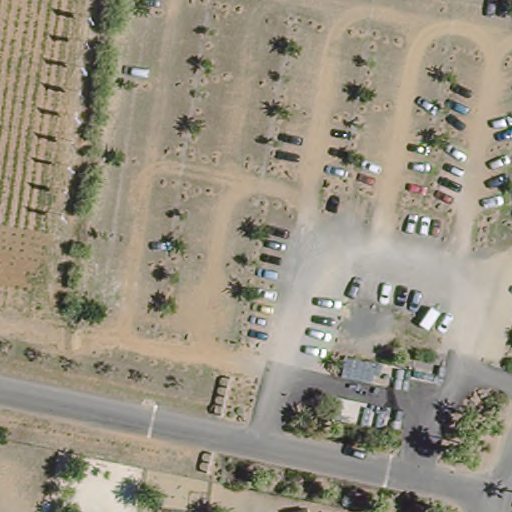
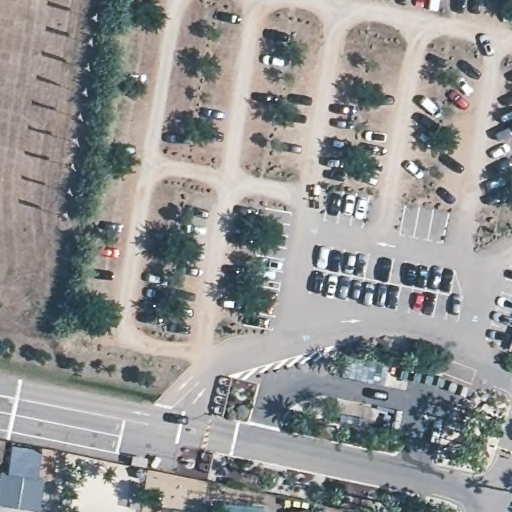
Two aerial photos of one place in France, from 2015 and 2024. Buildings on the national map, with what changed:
new [(6,473),(10,445),(40,450),(36,477),(44,479),(38,512),(29,512),(0,507),(0,471),(6,473)]
unchanged [(406,496),(424,500),(421,512),(401,512),(406,496)]
unchanged [(304,511),(305,512),(298,512),(304,511)]

